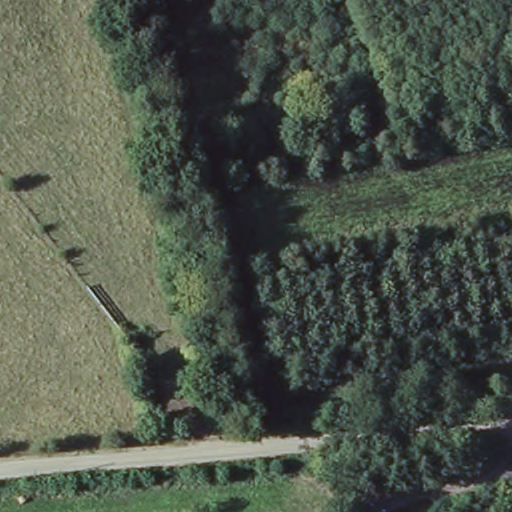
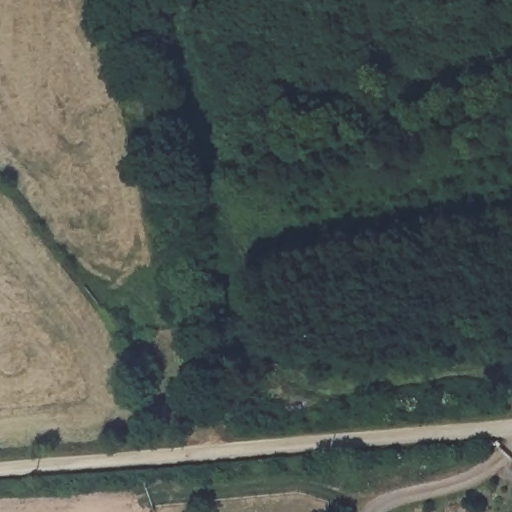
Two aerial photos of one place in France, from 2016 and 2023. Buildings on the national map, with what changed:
[]

